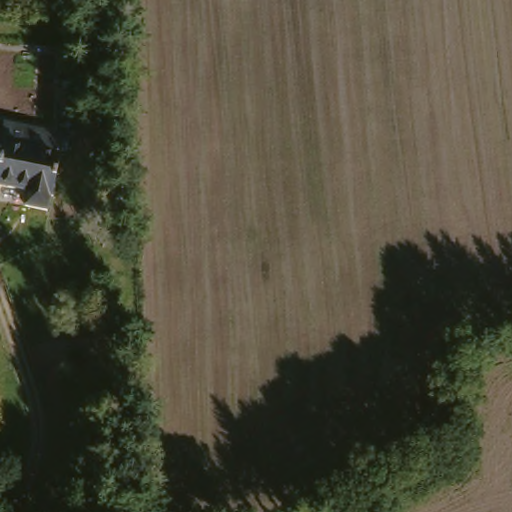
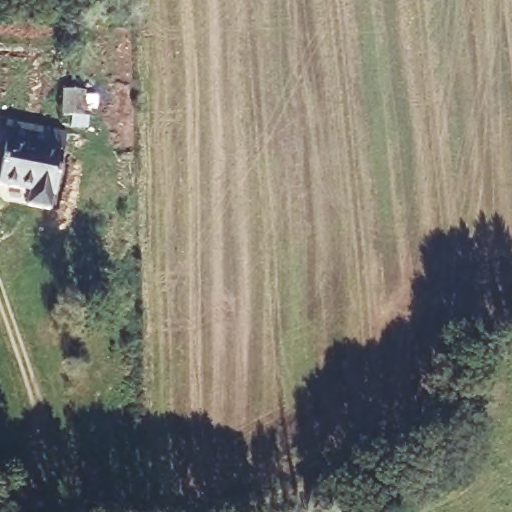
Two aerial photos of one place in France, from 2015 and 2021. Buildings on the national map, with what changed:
unchanged [(6,146),(9,127),(67,137),(64,156),(58,197),(51,196),(49,208),(28,206),(29,191),(0,185),(6,146)]

